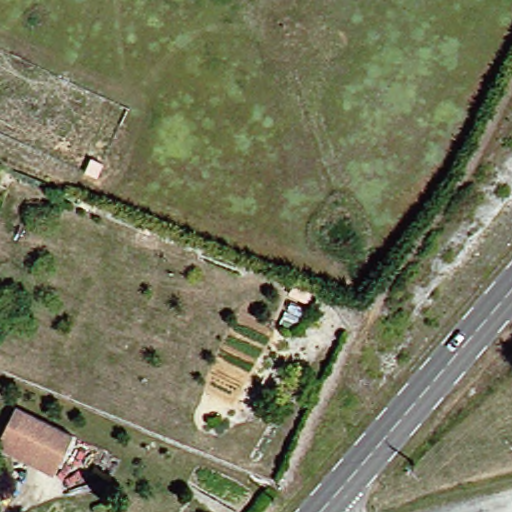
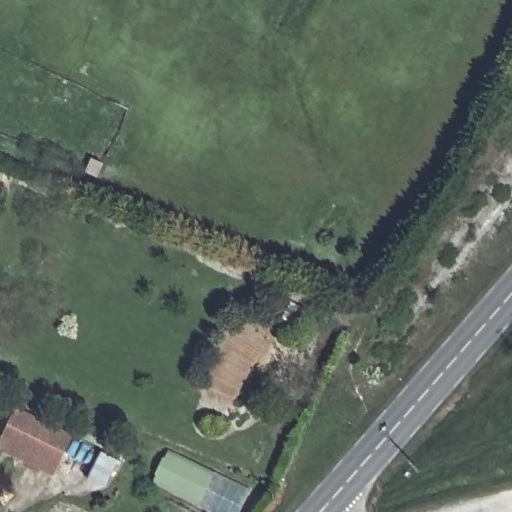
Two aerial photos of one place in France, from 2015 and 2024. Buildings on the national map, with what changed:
unchanged [(0,415),(5,406),(64,434),(48,466),(44,476),(0,455),(0,415)]
new [(168,450),(250,490),(240,512),(213,512),(153,483),(168,450)]

